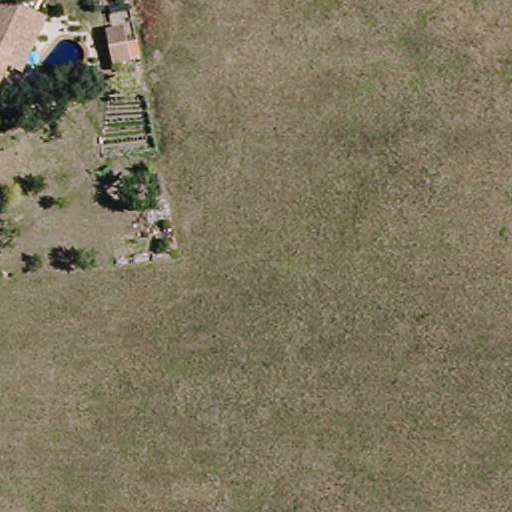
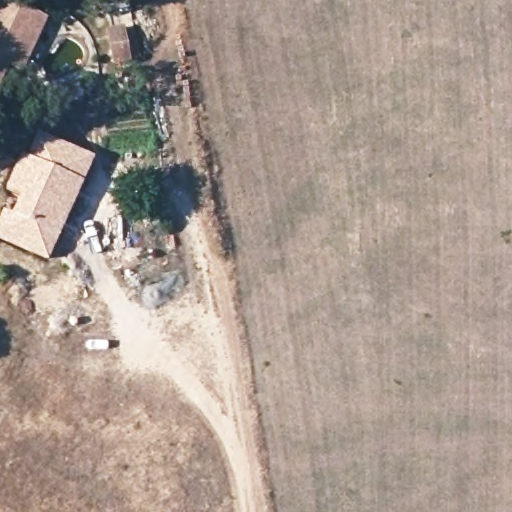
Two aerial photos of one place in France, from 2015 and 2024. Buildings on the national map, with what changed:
unchanged [(46,17),(22,72),(9,67),(0,83),(0,0),(8,0),(46,17)]
unchanged [(124,19),(128,42),(143,39),(146,57),(112,64),(103,24),(124,19)]
new [(2,208),(10,211),(18,196),(3,188),(12,167),(35,130),(95,156),(47,260),(0,240),(0,212),(2,208)]

